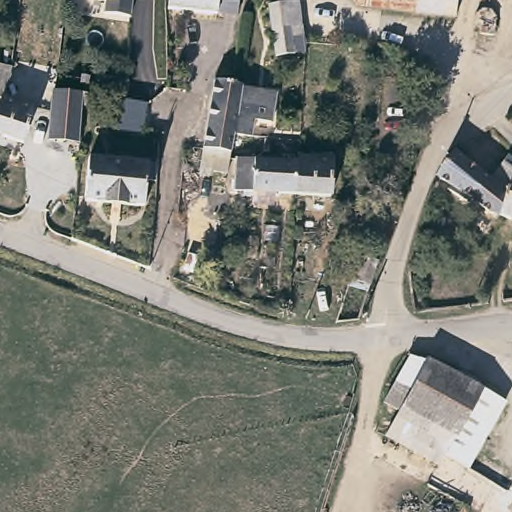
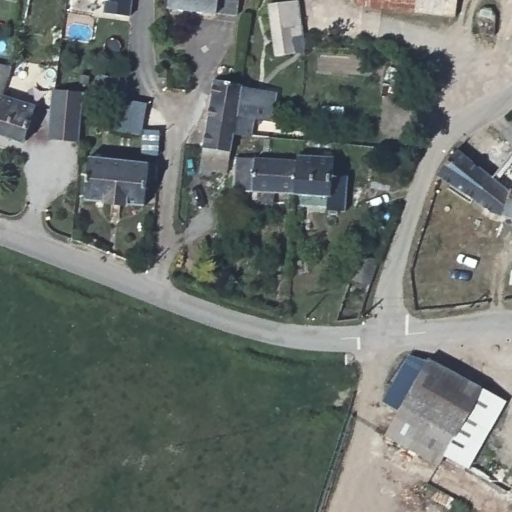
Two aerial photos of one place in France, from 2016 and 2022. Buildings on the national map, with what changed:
unchanged [(131,4),(130,18),(105,15),(106,2),(87,0),(128,0),(131,4)]
unchanged [(237,15),(217,13),(216,15),(169,9),(170,0),(239,0),(237,15)]
unchanged [(405,12),(356,9),(351,0),(459,0),(457,20),(405,12)]
unchanged [(292,37),(295,54),(275,56),(267,5),(297,1),(301,26),(302,36),(292,37)]
unchanged [(35,108),(24,141),(0,134),(0,66),(10,69),(7,84),(23,88),(19,102),(35,108)]
unchanged [(213,171),(212,176),(199,174),(204,148),(207,123),(211,93),(213,82),(243,85),(242,88),(276,93),(271,123),(254,121),(252,138),(233,136),(230,152),(227,173),(213,171)]
unchanged [(125,89),(124,105),(95,100),(96,85),(125,89)]
unchanged [(94,105),(92,120),(82,118),(79,153),(49,150),(54,98),(83,103),(94,105)]
unchanged [(270,139),(268,151),(263,151),(265,139),(270,139)]
unchanged [(500,216),(439,177),(456,151),(490,177),(503,161),(511,166),(512,166),(512,220),(500,216)]
unchanged [(298,161),(298,156),(333,159),(331,196),(296,194),(298,161)]
unchanged [(156,165),(155,180),(146,179),(143,207),(85,200),(89,158),(156,165)]
unchanged [(296,194),(234,190),(236,158),(298,161),(296,194)]
unchanged [(378,262),(370,286),(349,278),(356,254),(378,262)]
unchanged [(426,358),(428,354),(484,384),(444,451),(438,461),(385,431),(400,405),(383,396),(410,350),(426,358)]
unchanged [(507,397),(468,464),(444,451),(484,384),(507,397)]

